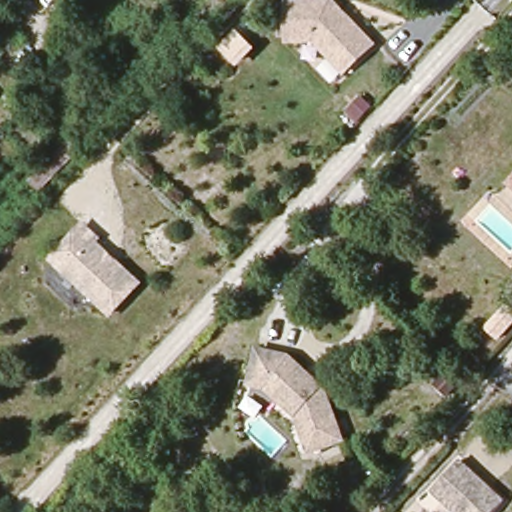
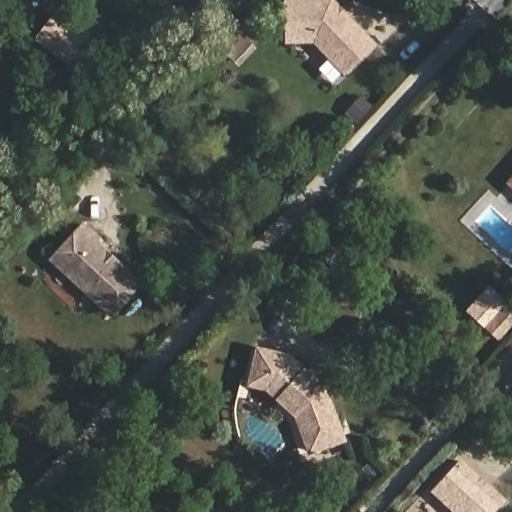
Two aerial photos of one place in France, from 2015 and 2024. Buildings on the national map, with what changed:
unchanged [(320,44),(294,44),(292,4),(336,3),(377,46),(348,74),(320,44)]
unchanged [(49,263),(79,227),(95,240),(91,244),(136,284),(109,316),(49,263)]
unchanged [(300,363),(333,395),(351,446),(318,457),(305,418),(288,404),(280,395),(264,389),(265,374),(267,354),(300,363)]
unchanged [(429,491),(454,462),(501,502),(493,512),(454,512),(429,491)]

